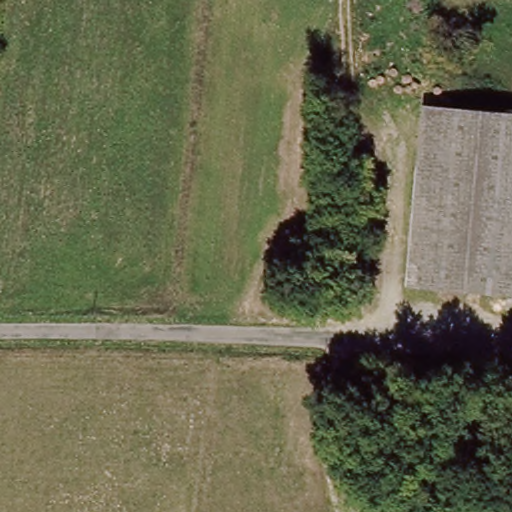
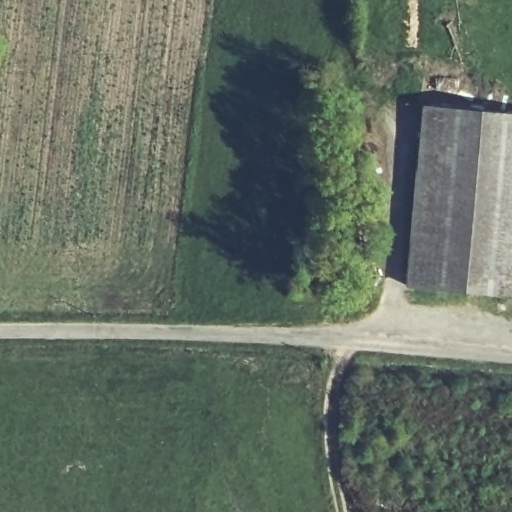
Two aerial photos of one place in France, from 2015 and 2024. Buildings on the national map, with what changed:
unchanged [(431,102),(512,111),(512,293),(409,280),(431,102)]

